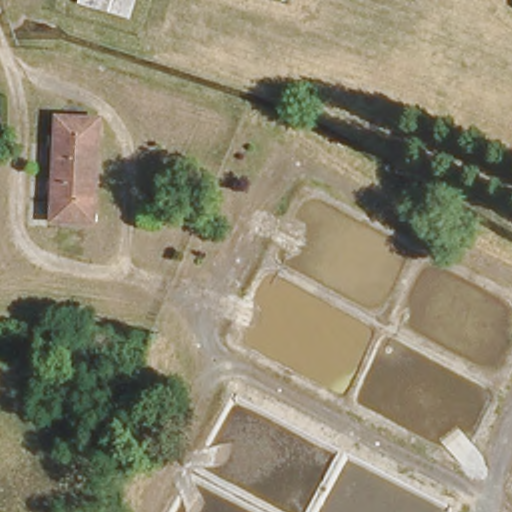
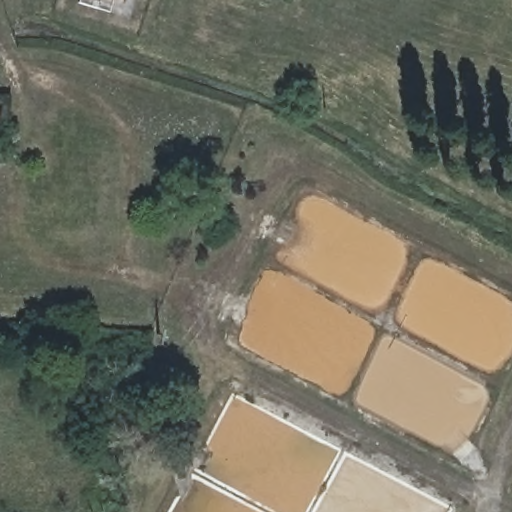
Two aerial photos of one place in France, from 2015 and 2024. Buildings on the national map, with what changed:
unchanged [(135,2),(123,0),(136,0),(135,2)]
demolished [(95,210),(51,209),(55,110),(98,110),(95,210)]

